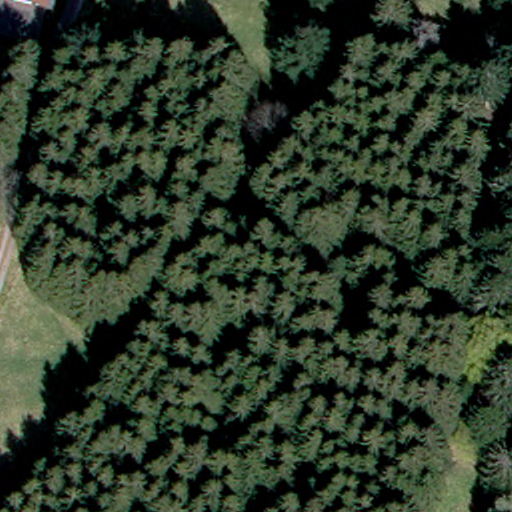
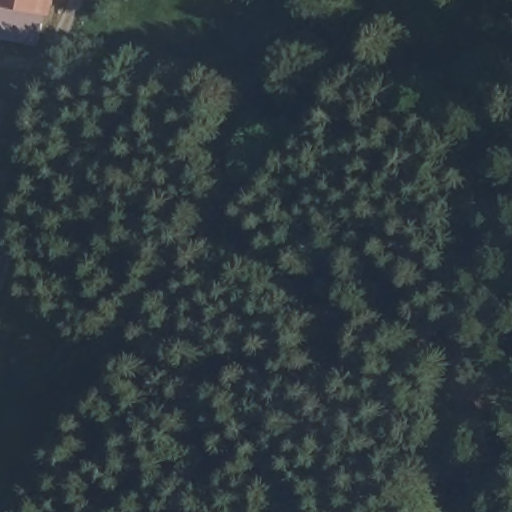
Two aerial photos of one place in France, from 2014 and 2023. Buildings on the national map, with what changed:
unchanged [(43,0),(38,16),(32,44),(0,35),(0,0),(43,0)]
unchanged [(6,104),(0,123),(0,101),(6,104)]

